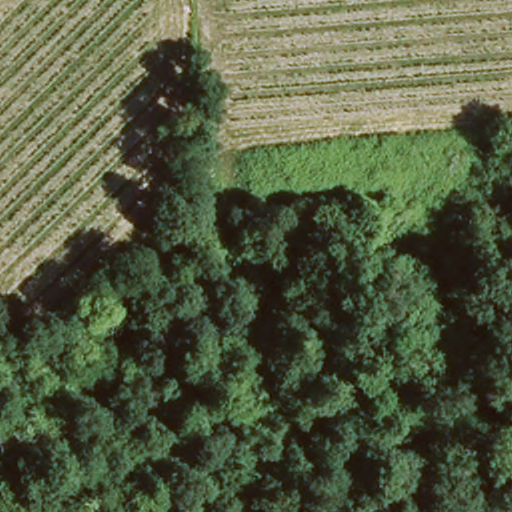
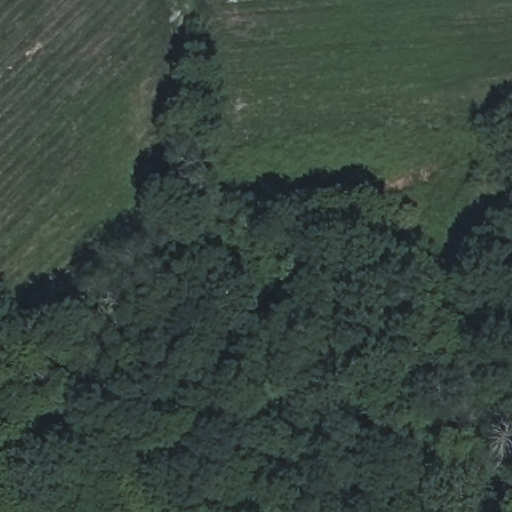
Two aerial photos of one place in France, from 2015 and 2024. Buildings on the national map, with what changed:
unchanged [(163,233),(181,242),(175,257),(155,247),(163,233)]

